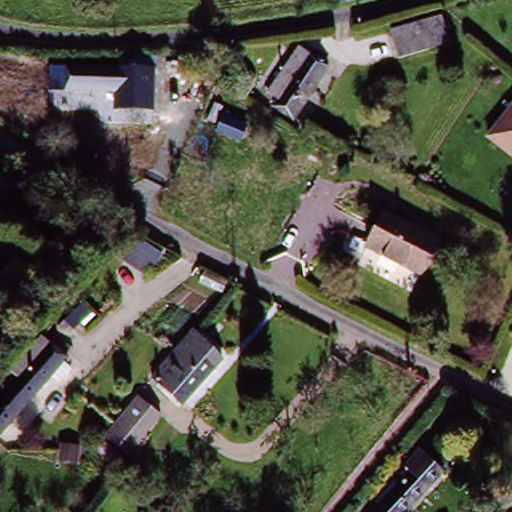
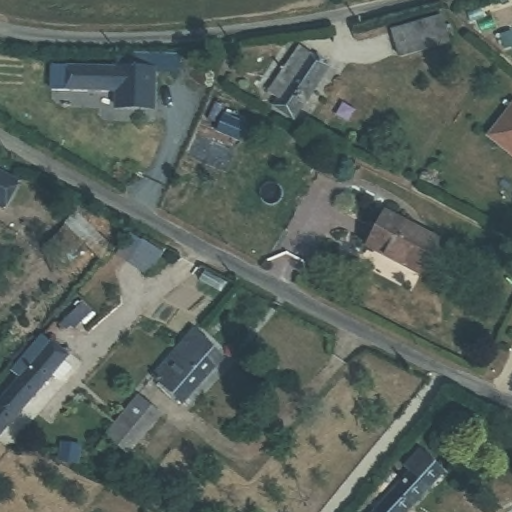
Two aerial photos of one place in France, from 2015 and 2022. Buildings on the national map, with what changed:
unchanged [(438,15),(445,42),(410,52),(402,24),(438,15)]
unchanged [(329,70),(293,122),(273,110),(279,102),(269,95),(299,49),(329,70)]
unchanged [(49,95),(48,71),(112,72),(112,63),(127,63),(129,59),(152,60),(153,66),(153,75),(150,75),(149,97),(49,95)]
unchanged [(11,91),(19,61),(28,63),(40,67),(35,87),(23,84),(21,93),(11,91)]
unchanged [(246,126),(239,139),(219,129),(225,115),(246,126)]
unchanged [(496,142),(512,121),(512,155),(496,142)]
unchanged [(0,211),(0,181),(12,187),(0,211)]
unchanged [(114,258),(76,228),(86,216),(119,242),(125,238),(129,241),(114,258)]
unchanged [(439,244),(422,277),(367,249),(384,216),(439,244)]
unchanged [(169,251),(156,273),(126,255),(141,233),(169,251)]
unchanged [(89,311),(73,329),(68,325),(64,328),(60,323),(79,302),(89,311)]
unchanged [(222,362),(181,410),(151,386),(193,337),(222,362)]
unchanged [(53,347),(66,359),(0,435),(0,404),(33,367),(23,358),(39,338),(51,348),(53,347)]
unchanged [(126,413),(146,388),(169,408),(136,447),(113,428),(126,413)]
unchanged [(142,458),(134,468),(105,443),(113,433),(142,458)]
unchanged [(409,465),(422,450),(446,472),(409,512),(376,512),(415,471),(409,465)]

